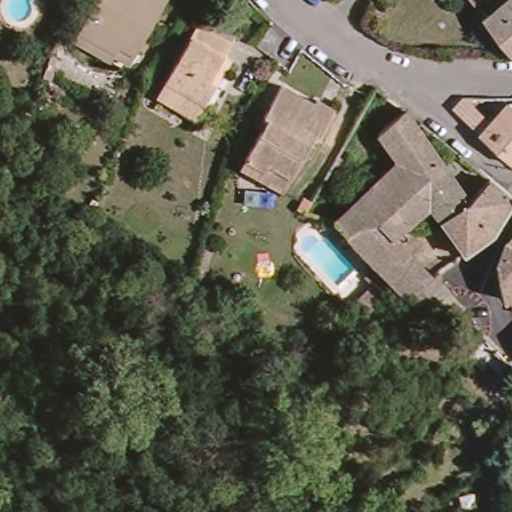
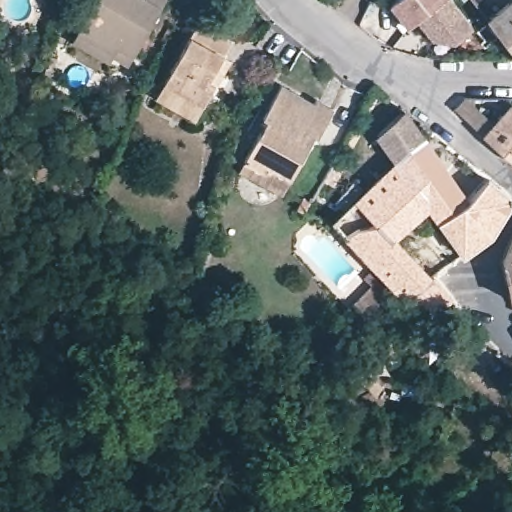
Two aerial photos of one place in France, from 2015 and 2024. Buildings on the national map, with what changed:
unchanged [(120,55),(114,65),(75,41),(81,32),(99,0),(172,0),(139,57),(135,64),(120,55)]
new [(395,0),(454,0),(474,28),(453,42),(432,38),(429,40),(416,21),(408,27),(390,4),(395,0)]
unchanged [(509,0),(512,0),(512,41),(492,15),(509,0)]
unchanged [(160,96),(199,23),(231,41),(224,54),(232,58),(218,83),(198,117),(160,96)]
unchanged [(241,169),(246,159),(263,125),(258,122),(264,111),(281,79),(313,99),(316,94),(333,103),(318,131),(312,129),(290,171),(279,190),(241,169)]
unchanged [(509,95),(512,99),(512,156),(482,129),(509,95)]
unchanged [(333,222),(394,160),(375,134),(404,109),(409,114),(467,196),(474,189),(486,176),(512,197),(495,223),(490,234),(462,253),(427,206),(394,237),(430,272),(435,272),(463,312),(419,301),(411,287),(401,293),(333,222)]
demolished [(351,146),(362,153),(353,170),(341,164),(351,146)]
unchanged [(510,247),(512,242),(512,298),(510,301),(502,267),(510,247)]
unchanged [(393,356),(388,365),(376,359),(382,349),(393,356)]

